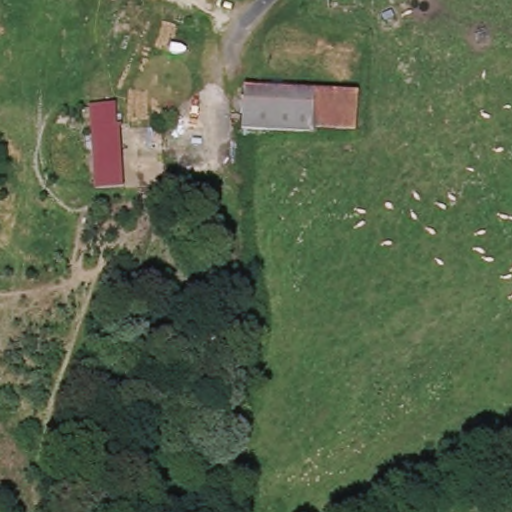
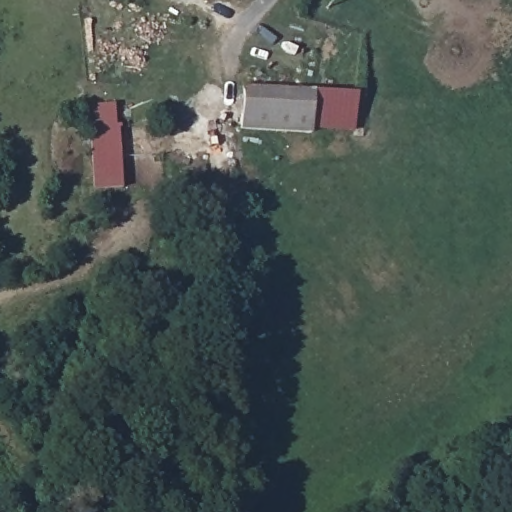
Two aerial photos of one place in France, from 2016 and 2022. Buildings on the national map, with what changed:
unchanged [(357,132),(335,130),(321,129),(315,128),(312,134),(292,132),(242,128),(246,89),(360,99),(357,132)]
unchanged [(124,188),(96,188),(92,131),(90,110),(117,110),(119,131),(122,131),(124,188)]

